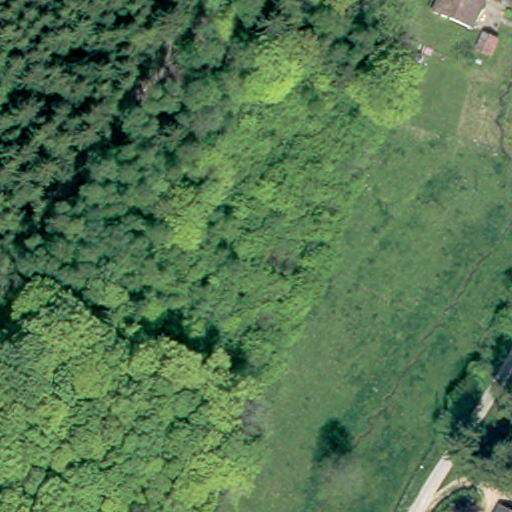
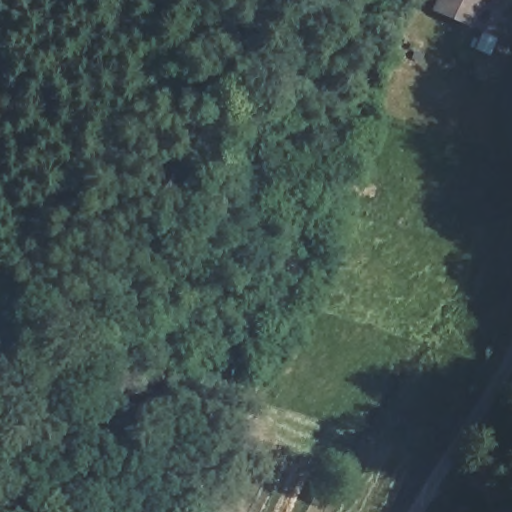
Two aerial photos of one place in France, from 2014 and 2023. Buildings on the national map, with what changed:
unchanged [(438,0),(478,0),(465,18),(438,0)]
unchanged [(450,419),(436,408),(440,404),(448,394),(461,404),(457,410),(450,419)]
unchanged [(497,510),(501,512),(497,512),(497,510)]

